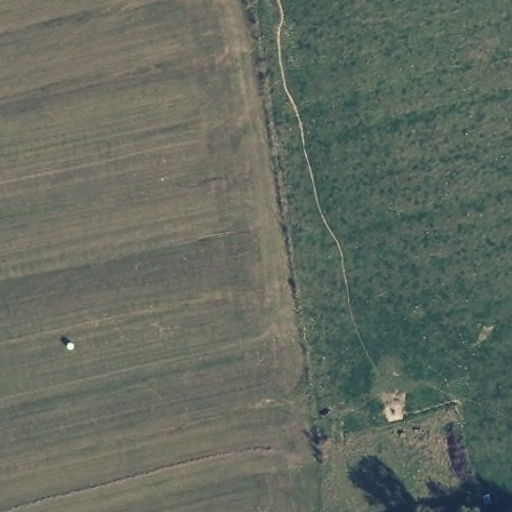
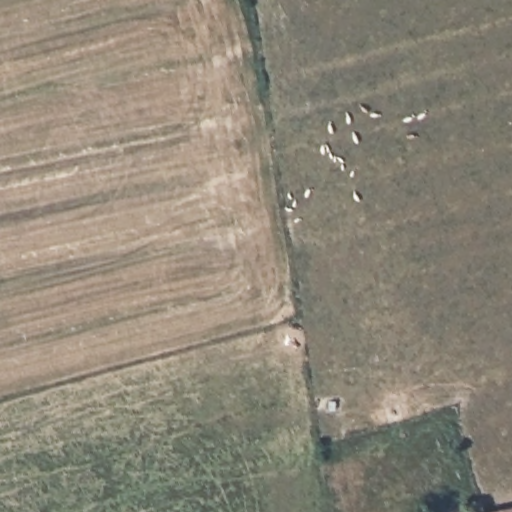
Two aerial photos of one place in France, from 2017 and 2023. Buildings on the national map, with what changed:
unchanged [(511,512),(430,512),(507,496),(511,512)]

